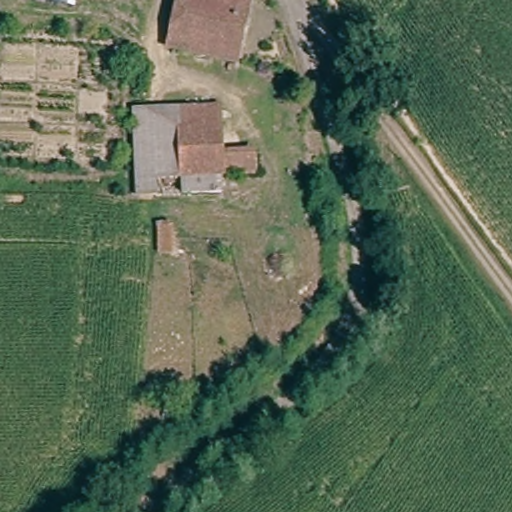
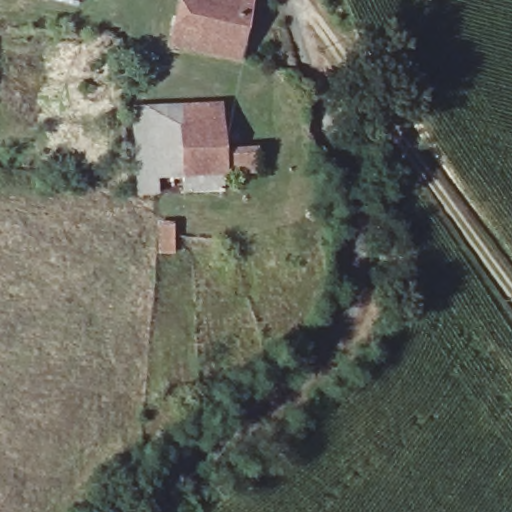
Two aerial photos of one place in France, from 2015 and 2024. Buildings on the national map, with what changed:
unchanged [(42,0),(77,0),(75,9),(42,0)]
unchanged [(161,48),(170,0),(254,0),(241,61),(161,48)]
unchanged [(225,154),(254,153),(254,176),(160,178),(160,192),(135,192),(131,109),(219,103),(225,154)]

